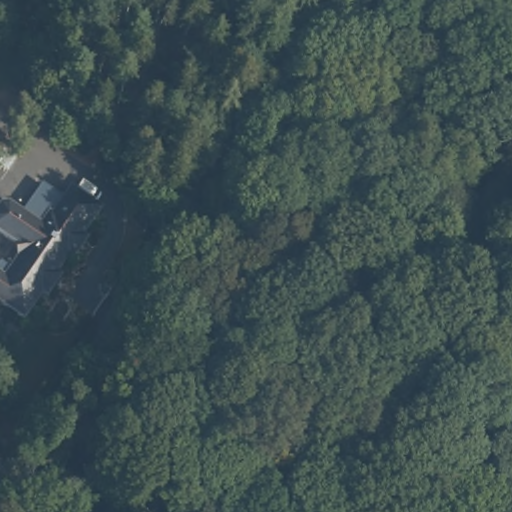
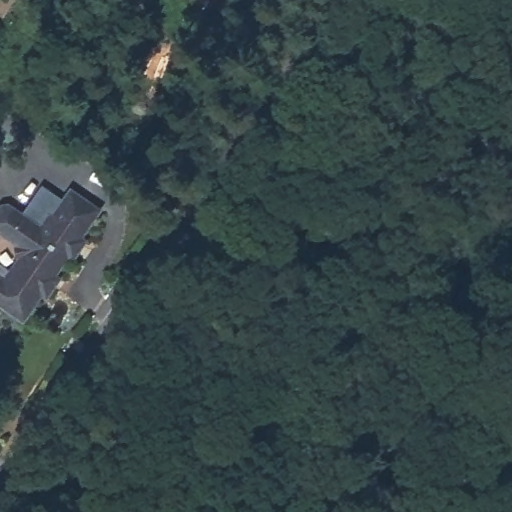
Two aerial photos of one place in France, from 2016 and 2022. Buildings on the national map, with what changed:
unchanged [(0,304),(0,276),(3,277),(15,261),(17,256),(15,243),(0,232),(0,205),(0,204),(8,202),(40,225),(49,213),(54,215),(70,188),(90,201),(101,207),(80,235),(85,238),(72,257),(68,254),(55,273),(56,275),(51,283),(53,285),(45,295),(40,293),(22,320),(0,304)]

